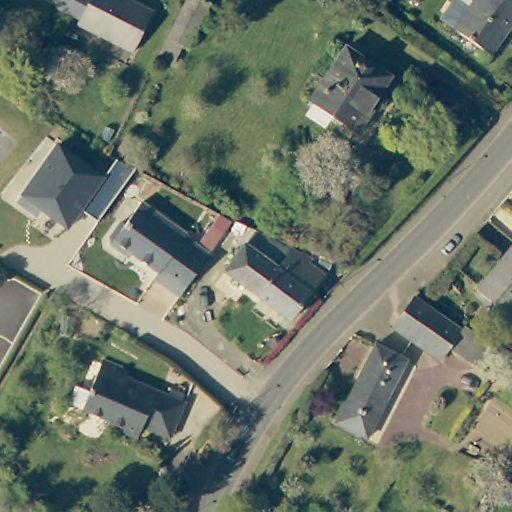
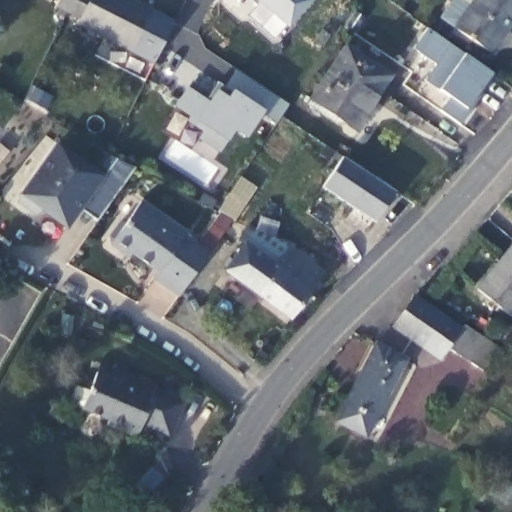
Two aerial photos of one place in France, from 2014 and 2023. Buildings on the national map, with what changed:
unchanged [(58,0),(72,0),(68,9),(56,4),(58,0)]
unchanged [(80,15),(68,9),(72,0),(138,0),(151,7),(133,46),(78,20),(80,15)]
demolished [(199,0),(209,5),(188,48),(180,44),(170,65),(156,59),(185,0),(199,0)]
new [(238,0),(240,0),(240,1),(238,0)]
new [(259,3),(256,4),(251,0),(310,0),(288,29),(259,3)]
unchanged [(488,55),(452,29),(473,0),(512,0),(512,22),(488,55)]
new [(464,54),(492,74),(494,76),(461,124),(441,110),(452,99),(440,90),(425,81),(437,65),(413,49),(428,29),(464,54)]
unchanged [(309,100),(346,47),(390,78),(354,130),(309,100)]
new [(276,124),(263,112),(246,140),(235,132),(228,144),(219,153),(198,140),(202,132),(186,123),(189,116),(174,107),(186,86),(209,101),(216,90),(219,81),(225,85),(235,70),(288,105),(276,124)]
unchanged [(98,219),(83,210),(68,230),(41,212),(37,217),(16,203),(21,195),(18,194),(56,142),(105,175),(117,159),(136,169),(98,219)]
new [(394,192),(374,224),(322,189),(342,157),(394,192)]
unchanged [(152,280),(156,274),(125,251),(118,252),(109,246),(108,239),(120,222),(124,225),(140,204),(185,236),(184,238),(196,247),(211,226),(223,235),(217,244),(208,255),(193,277),(178,298),(152,280)]
unchanged [(506,317),(474,290),(512,243),(512,309),(506,317)]
unchanged [(309,255),(344,270),(333,281),(317,275),(285,318),(219,270),(238,244),(260,260),(266,251),(278,259),(285,249),(304,262),(309,255)]
unchanged [(495,372),(452,342),(440,360),(392,327),(413,296),(461,330),(504,359),(495,372)]
unchanged [(374,345),(404,360),(383,401),(353,385),(374,345)]
unchanged [(139,427),(135,438),(105,426),(108,420),(81,410),(66,403),(74,386),(88,391),(96,373),(120,383),(123,377),(183,401),(171,430),(168,438),(139,427)]
unchanged [(353,385),(383,401),(365,436),(335,421),(353,385)]
unchanged [(512,484),(512,507),(480,492),(488,472),(512,484)]

